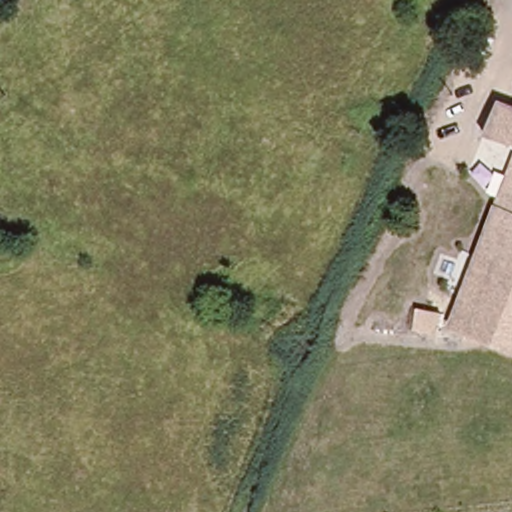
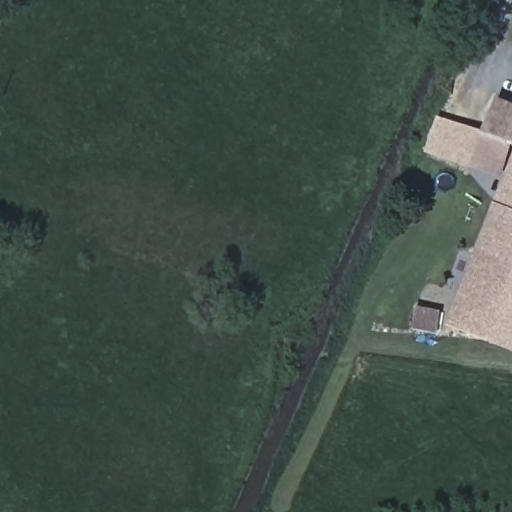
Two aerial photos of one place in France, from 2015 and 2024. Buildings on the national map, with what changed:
unchanged [(512,106),(512,144),(481,131),(493,99),(512,106)]
new [(510,143),(498,176),(422,152),(435,115),(481,131),(510,143)]
unchanged [(449,320),(512,158),(512,346),(449,320)]

